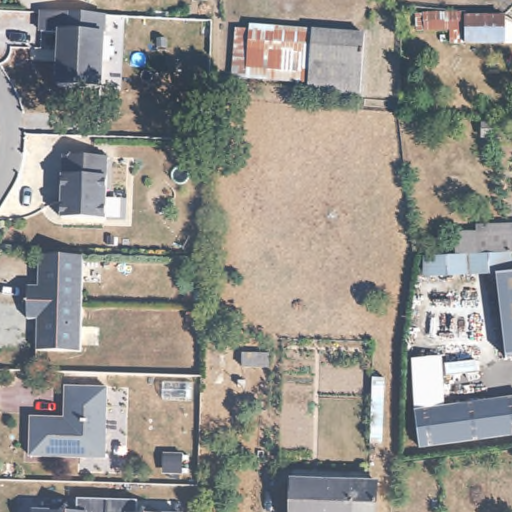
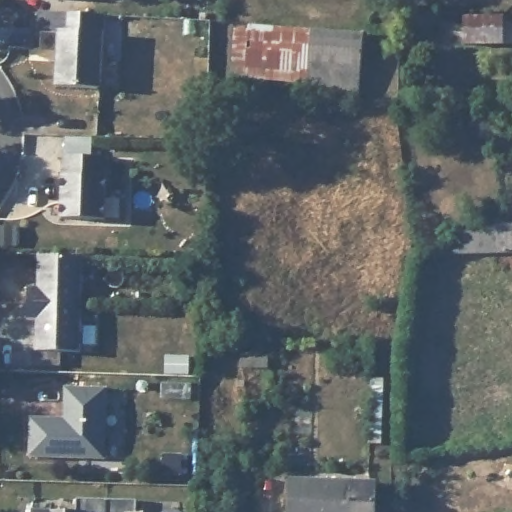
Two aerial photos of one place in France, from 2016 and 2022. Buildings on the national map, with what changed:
unchanged [(501,14),(497,50),(432,45),(433,31),(412,30),(414,6),(501,14)]
unchanged [(107,15),(101,89),(59,85),(63,32),(43,30),(44,10),(107,15)]
unchanged [(306,89),(306,82),(307,35),(307,30),(354,31),(358,31),(356,92),(348,91),(323,91),(306,90),(306,89)]
unchanged [(243,80),(244,34),(307,35),(306,82),(243,80)]
unchanged [(110,155),(107,218),(63,216),(66,154),(110,155)]
unchanged [(509,255),(504,255),(477,255),(477,227),(506,227),(509,226),(510,237),(512,236),(512,254),(509,254),(509,255)]
unchanged [(85,255),(82,350),(37,349),(38,328),(42,328),(42,318),(29,318),(30,284),(43,284),(44,274),(40,274),(41,254),(85,255)]
demolished [(512,282),(512,355),(502,356),(493,275),(506,274),(511,273),(512,282)]
demolished [(512,282),(511,273),(512,273),(512,282)]
unchanged [(109,387),(107,457),(31,454),(32,416),(71,417),(71,404),(67,404),(68,386),(109,387)]
demolished [(406,413),(512,398),(512,435),(411,449),(406,413)]
unchanged [(288,483),(366,485),(373,485),(372,512),(287,512),(288,483)]
unchanged [(139,498),(138,512),(153,512),(35,512),(35,509),(78,509),(79,496),(139,498)]

